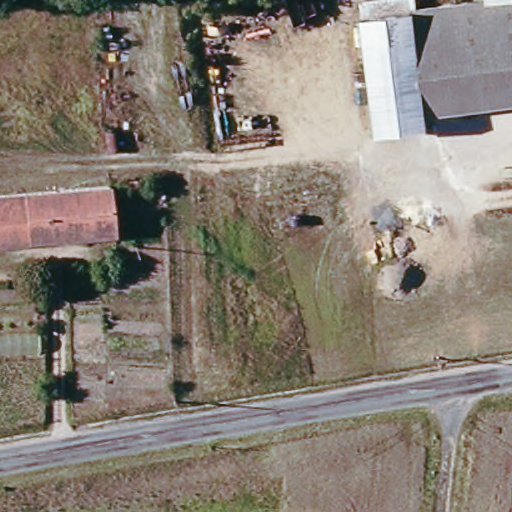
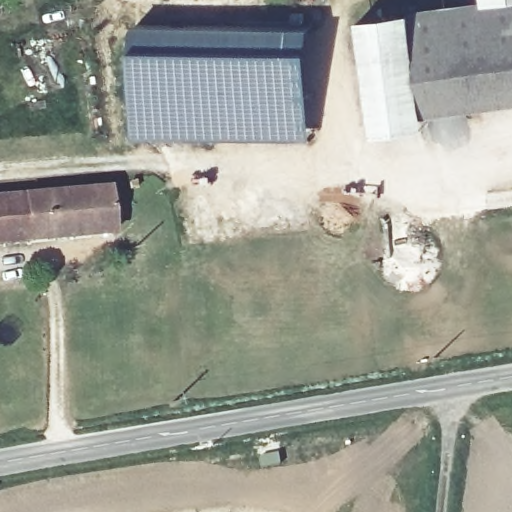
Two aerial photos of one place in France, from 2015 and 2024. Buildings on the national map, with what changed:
unchanged [(408,14),(422,99),(512,84),(512,102),(425,115),(427,125),(374,132),(360,18),(358,1),(366,0),(415,0),(417,12),(408,14)]
unchanged [(422,99),(408,14),(485,0),(488,0),(512,0),(512,84),(422,99)]
new [(133,26),(312,25),(314,126),(131,128),(133,26)]
unchanged [(99,232),(0,243),(0,194),(94,184),(99,232)]

